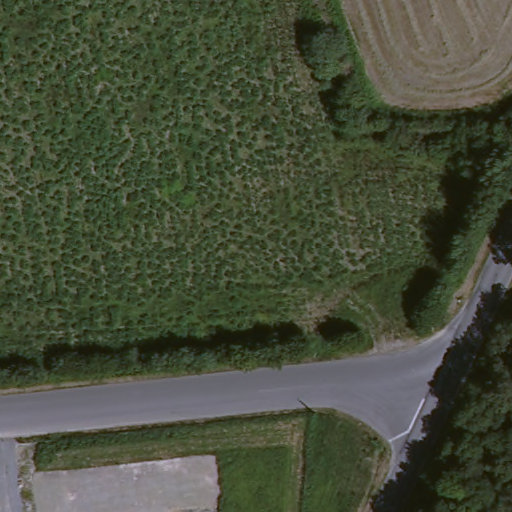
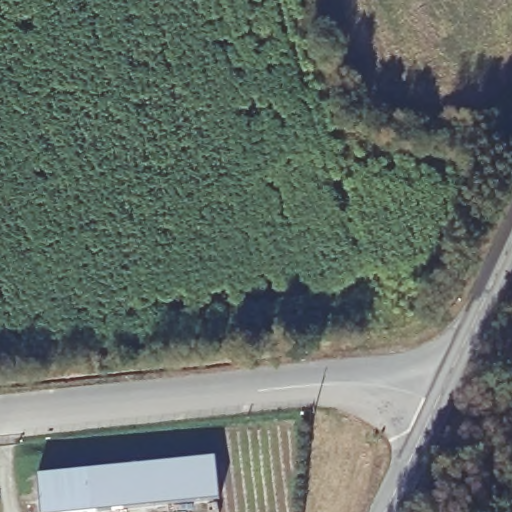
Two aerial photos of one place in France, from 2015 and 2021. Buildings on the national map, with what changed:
new [(220,498),(94,512),(42,512),(39,476),(215,457),(220,498)]

